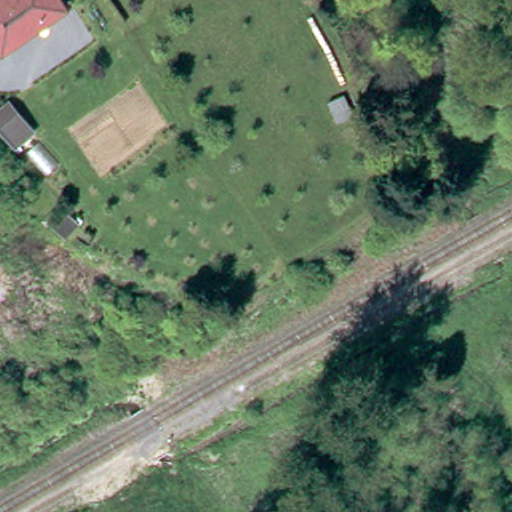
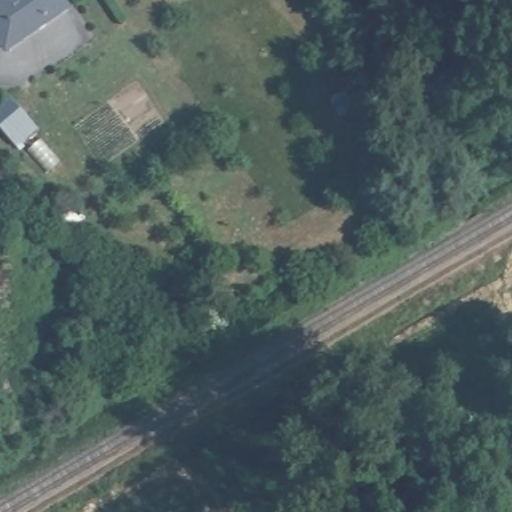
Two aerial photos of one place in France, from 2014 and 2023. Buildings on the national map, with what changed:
unchanged [(0,0),(57,0),(16,27),(19,31),(1,44),(0,42),(0,0)]

